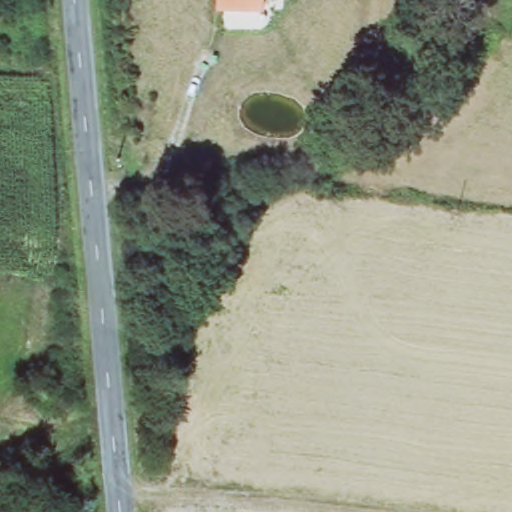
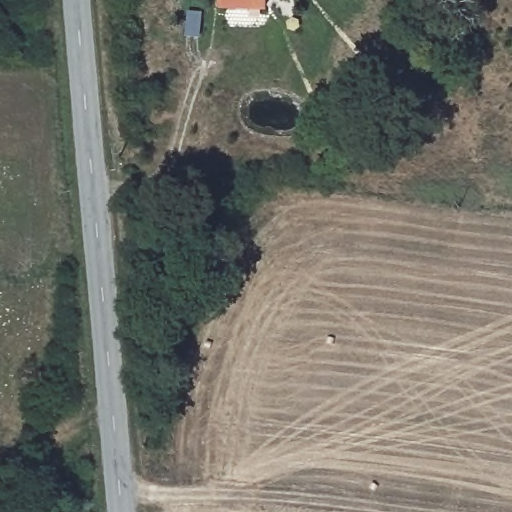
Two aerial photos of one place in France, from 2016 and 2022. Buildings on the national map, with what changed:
unchanged [(269,12),(221,12),(221,0),(269,0),(269,12)]

